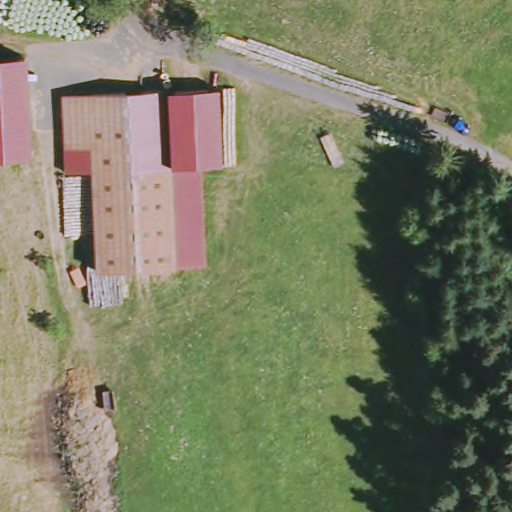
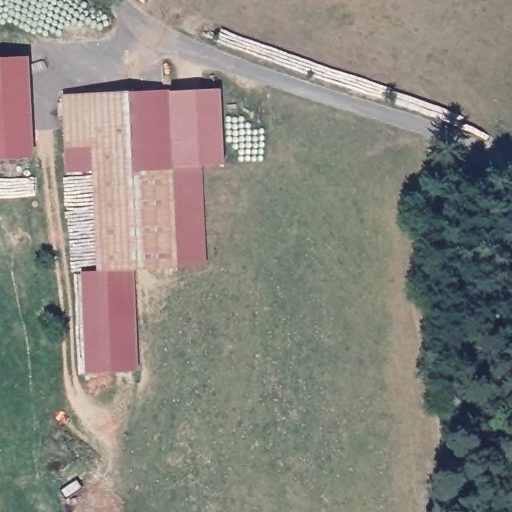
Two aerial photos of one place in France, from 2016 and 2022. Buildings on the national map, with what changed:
unchanged [(31,159),(0,161),(0,57),(27,56),(31,159)]
unchanged [(171,165),(201,165),(208,267),(97,272),(92,172),(65,173),(61,96),(169,90),(171,165)]
unchanged [(202,170),(201,165),(171,165),(171,163),(169,94),(220,90),(224,167),(202,170)]
new [(97,272),(133,271),(137,371),(85,373),(82,272),(97,272)]

